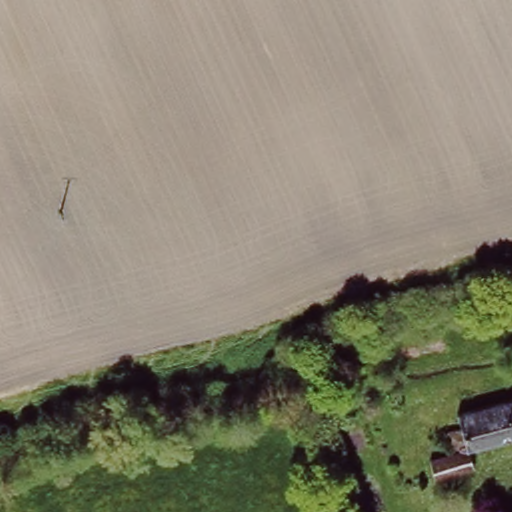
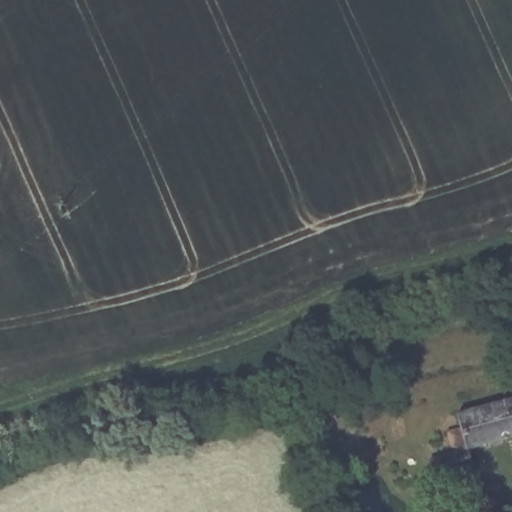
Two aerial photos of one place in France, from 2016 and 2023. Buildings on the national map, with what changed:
unchanged [(468,451),(472,465),(435,477),(430,463),(451,456),(445,433),(461,428),(457,413),(512,397),(512,438),(468,451)]

